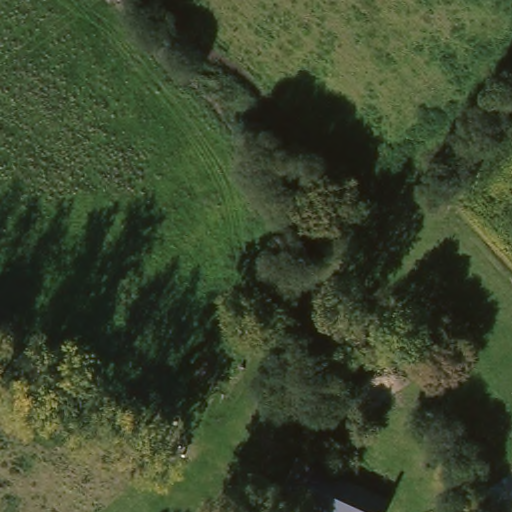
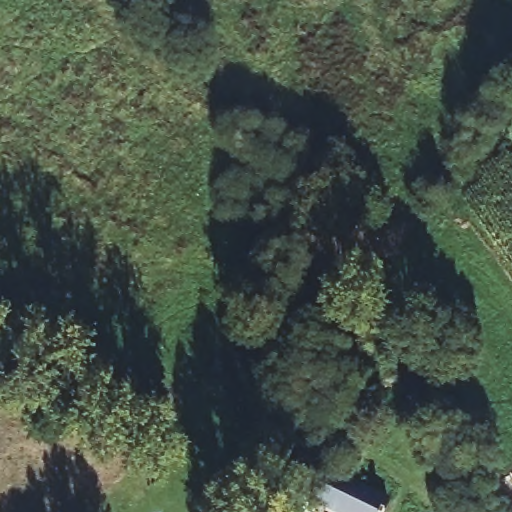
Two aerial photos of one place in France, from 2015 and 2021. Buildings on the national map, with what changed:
unchanged [(326,512),(303,502),(304,499),(285,490),(298,460),(318,469),(317,470),(388,502),(384,512),(326,512)]

